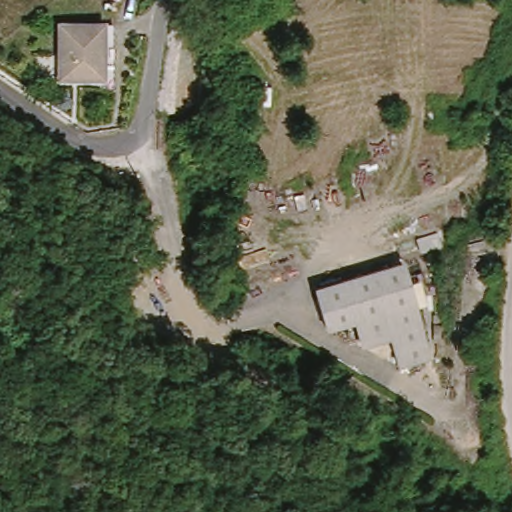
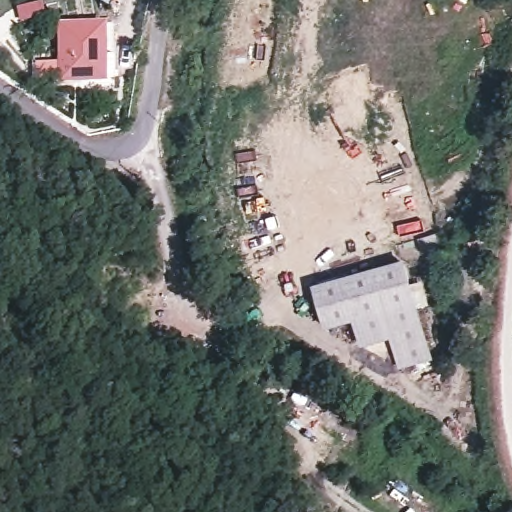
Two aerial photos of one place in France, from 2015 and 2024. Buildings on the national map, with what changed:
unchanged [(101,26),(100,68),(84,81),(53,80),(54,48),(55,25),(82,26),(101,26)]
unchanged [(409,261),(431,354),(400,362),(394,338),(366,343),(360,323),(329,329),(317,286),(409,261)]

